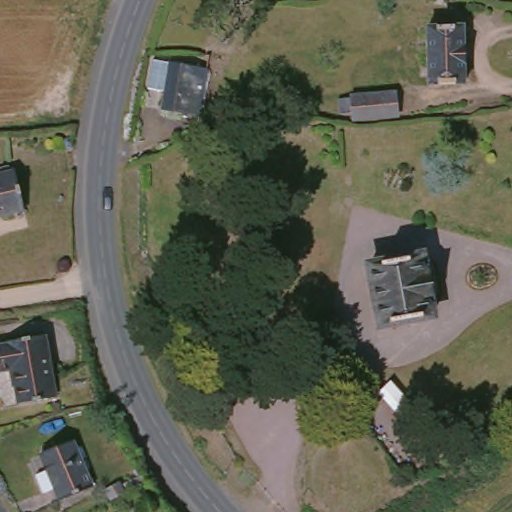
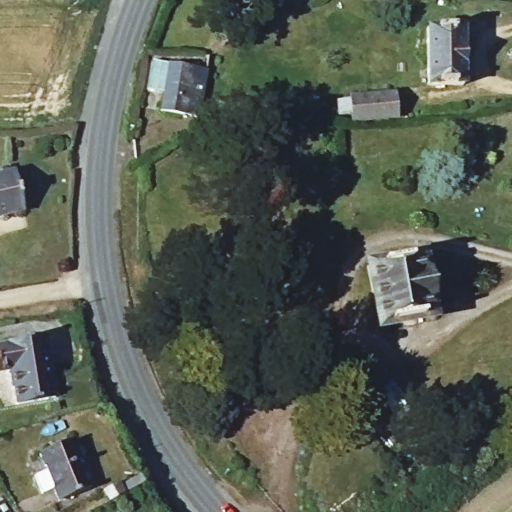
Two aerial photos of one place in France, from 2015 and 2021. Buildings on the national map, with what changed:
unchanged [(458,37),(458,90),(423,92),(423,89),(424,36),(458,37)]
unchanged [(192,125),(156,114),(162,94),(144,89),(151,64),(169,69),(204,79),(192,125)]
unchanged [(342,120),(340,104),(346,103),(346,101),(391,97),(393,120),(348,126),(348,120),(342,120)]
unchanged [(18,219),(0,222),(0,180),(11,177),(18,219)]
unchanged [(413,258),(414,264),(422,262),(428,297),(418,298),(423,319),(371,328),(360,268),(413,258)]
unchanged [(0,375),(0,349),(0,345),(38,341),(48,402),(9,407),(3,375),(0,375)]
unchanged [(391,420),(368,393),(381,383),(403,410),(391,420)]
unchanged [(69,448),(88,495),(56,508),(38,460),(69,448)]
unchanged [(117,485),(123,495),(108,502),(103,492),(117,485)]

